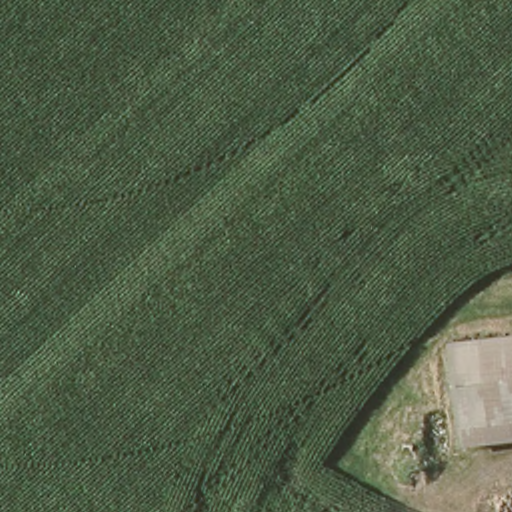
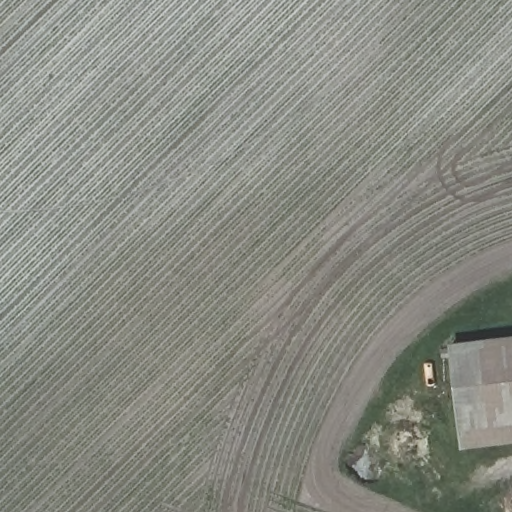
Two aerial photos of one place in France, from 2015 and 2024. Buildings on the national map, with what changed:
unchanged [(466,444),(453,347),(512,340),(512,439),(466,444)]

